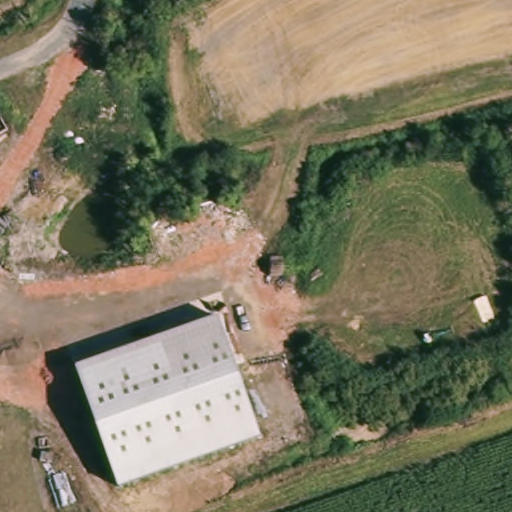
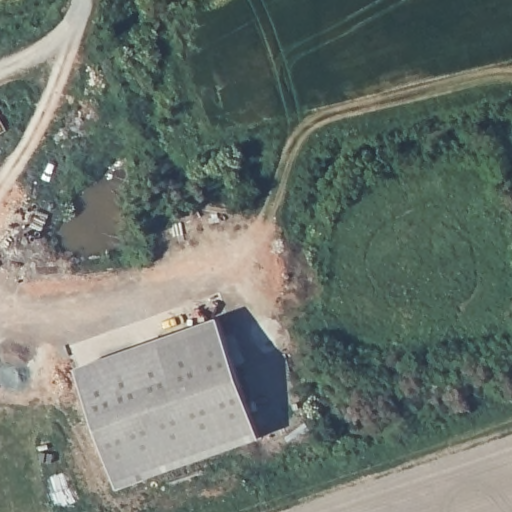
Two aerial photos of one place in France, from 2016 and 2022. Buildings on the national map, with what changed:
unchanged [(260,440),(119,487),(77,367),(217,319),(260,440)]

